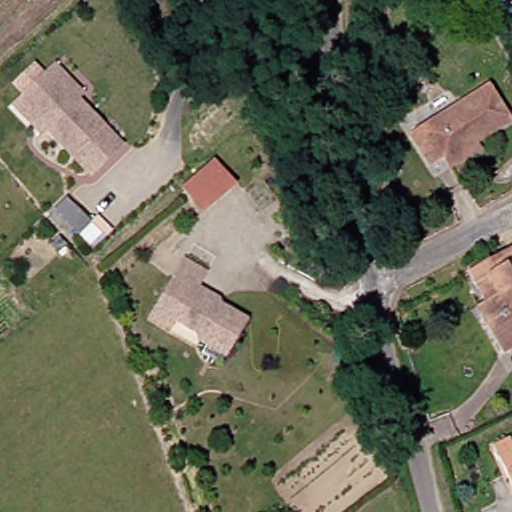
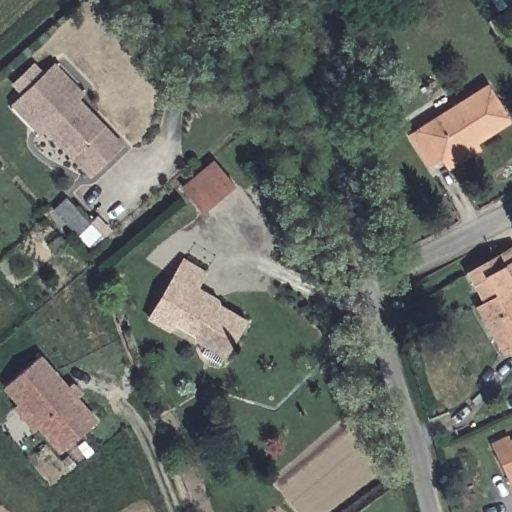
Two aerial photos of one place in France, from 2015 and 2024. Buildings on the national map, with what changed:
unchanged [(97,173),(52,127),(44,135),(17,110),(26,101),(56,72),(65,63),(91,89),(82,98),(127,143),(97,173)]
unchanged [(436,168),(429,155),(418,161),(401,130),(481,86),(502,124),(467,143),(470,150),(436,168)]
unchanged [(217,159),(237,183),(207,210),(187,186),(217,159)]
unchanged [(82,237),(62,215),(74,205),(94,227),(82,237)]
unchanged [(492,350),(466,305),(472,301),(456,271),(508,241),(512,247),(512,281),(510,282),(512,286),(512,360),(501,367),(492,350)]
unchanged [(151,312),(158,300),(175,272),(185,255),(202,265),(192,282),(247,316),(242,325),(217,346),(199,336),(201,332),(175,316),(171,324),(151,312)]
new [(67,386),(74,380),(83,393),(77,398),(99,420),(61,452),(38,428),(35,432),(12,407),(16,403),(3,389),(39,356),(67,386)]
unchanged [(505,489),(498,479),(477,443),(494,434),(498,442),(512,435),(512,485),(505,489)]

